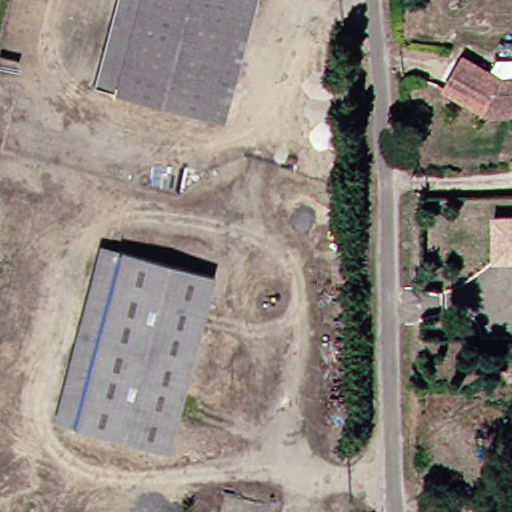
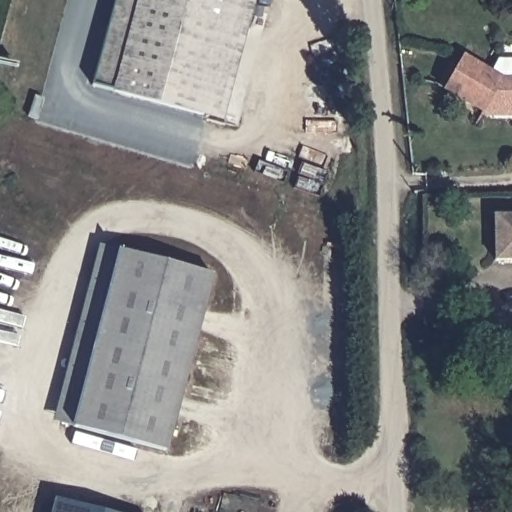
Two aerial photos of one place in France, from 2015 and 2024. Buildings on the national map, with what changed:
unchanged [(116,0),(140,0),(116,105),(92,99),(116,0)]
unchanged [(116,105),(140,0),(239,0),(209,129),(116,105)]
unchanged [(452,61),(497,81),(496,68),(510,66),(512,66),(512,113),(484,115),(435,95),(452,61)]
unchanged [(487,219),(512,217),(512,262),(489,263),(488,234),(487,219)]
unchanged [(110,249),(201,275),(155,450),(65,424),(110,249)]
new [(52,498),(103,512),(49,512),(52,498)]

